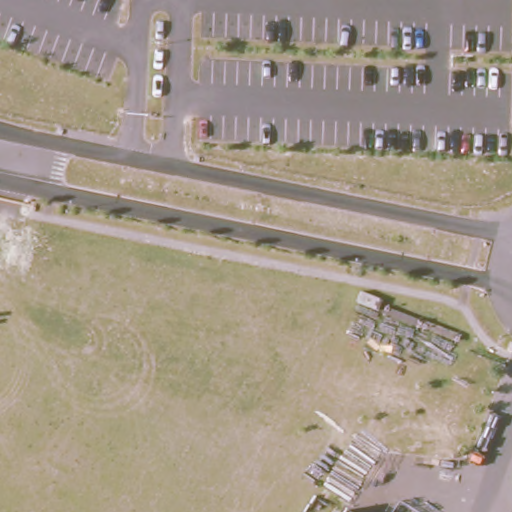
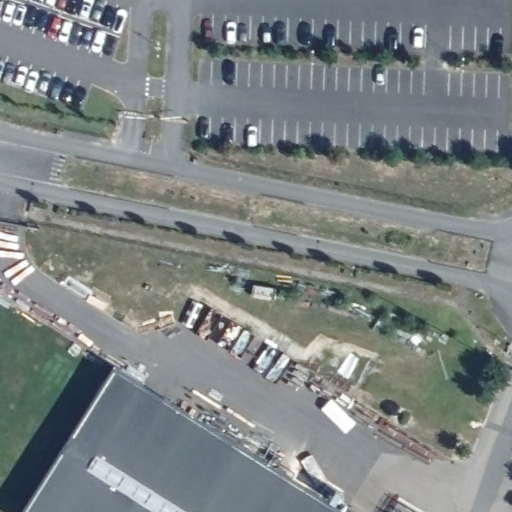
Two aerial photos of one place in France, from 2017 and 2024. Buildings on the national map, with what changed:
new [(217,512),(20,512),(113,365),(253,453),(217,512)]
new [(346,512),(217,512),(253,453),(346,512)]

